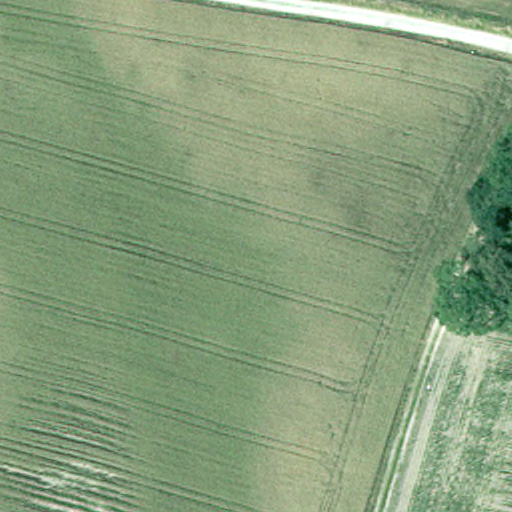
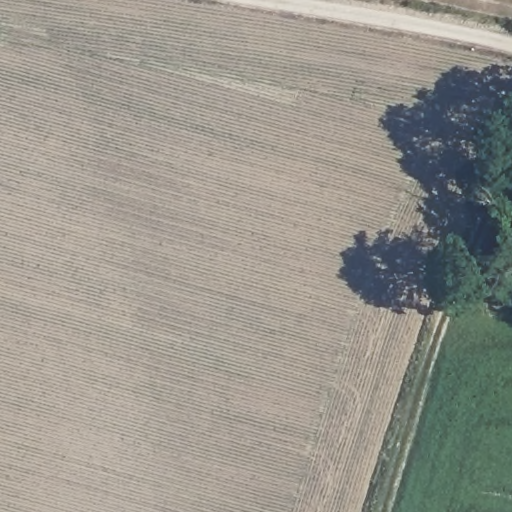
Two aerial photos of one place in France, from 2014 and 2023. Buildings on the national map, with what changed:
[]

